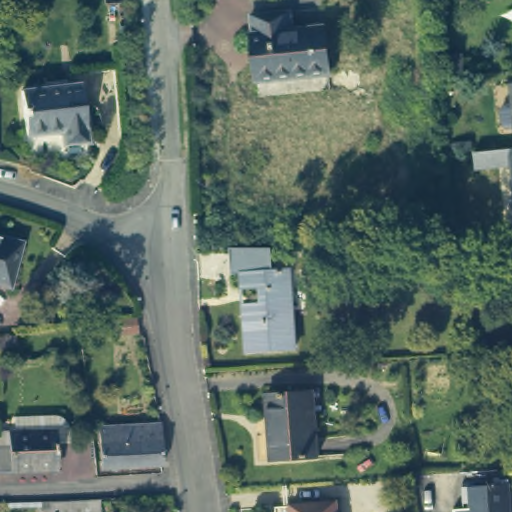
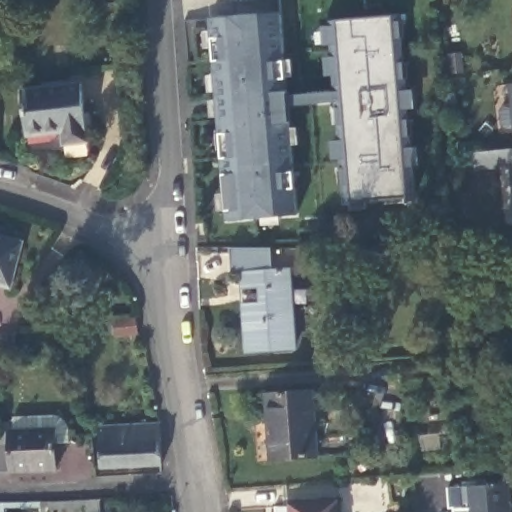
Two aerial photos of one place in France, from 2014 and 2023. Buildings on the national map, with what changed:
demolished [(258,83),(252,18),(257,18),(255,0),(322,0),(323,12),(292,15),(294,33),(326,30),(330,77),(258,83)]
new [(281,14),(287,91),(287,96),(333,92),(332,76),(327,76),(324,58),(329,57),(328,46),(322,46),(321,27),(328,26),(327,22),(399,17),(405,91),(412,90),(414,109),(406,110),(409,148),(416,147),(417,167),(410,168),(412,198),(342,202),(338,160),(333,160),(331,142),(336,141),(332,104),(289,108),(291,122),(297,215),(225,221),(209,19),(281,14)]
unchanged [(448,61),(462,59),(464,73),(450,75),(448,61)]
unchanged [(81,83),(87,140),(64,143),(63,130),(26,134),(21,90),(81,83)]
unchanged [(505,164),(469,167),(468,152),(512,148),(512,221),(511,221),(505,164)]
unchanged [(10,286),(0,283),(0,236),(21,241),(10,286)]
unchanged [(247,355),(244,304),(262,303),(261,288),(242,290),(241,274),(232,274),(230,249),(257,248),(258,248),(271,248),(272,272),(290,271),(295,352),(247,355)]
unchanged [(487,272),(487,258),(507,258),(508,272),(487,272)]
unchanged [(142,330),(121,333),(119,318),(140,315),(142,330)]
unchanged [(264,395),(313,391),(317,457),(269,461),(264,395)]
unchanged [(12,446),(11,428),(17,427),(16,413),(55,412),(61,414),(65,417),(69,423),(69,438),(56,439),(58,467),(13,469),(0,470),(0,447),(12,446)]
unchanged [(158,469),(100,471),(98,429),(157,427),(158,469)]
unchanged [(509,512),(454,512),(454,509),(469,508),(469,503),(464,503),(462,487),(507,483),(509,512)]
unchanged [(52,512),(51,496),(100,494),(101,512),(52,512)]
unchanged [(293,512),(292,500),(339,497),(340,512),(293,512)]
unchanged [(0,512),(0,499),(5,498),(5,512),(0,512)]

